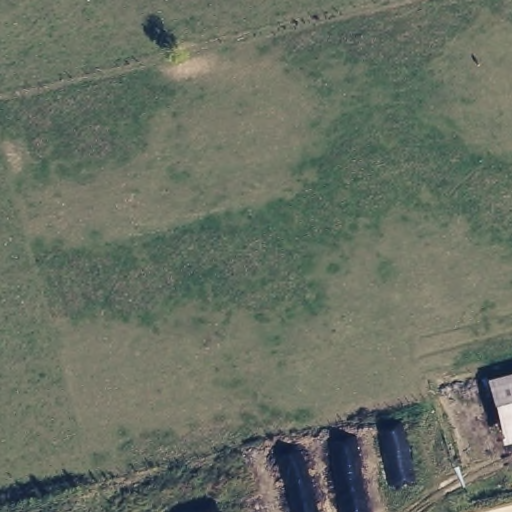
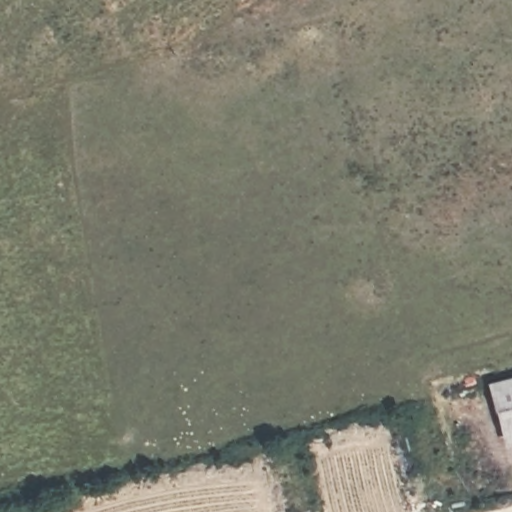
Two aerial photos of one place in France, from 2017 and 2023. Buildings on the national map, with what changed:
unchanged [(487,381),(512,375),(512,444),(503,446),(487,381)]

